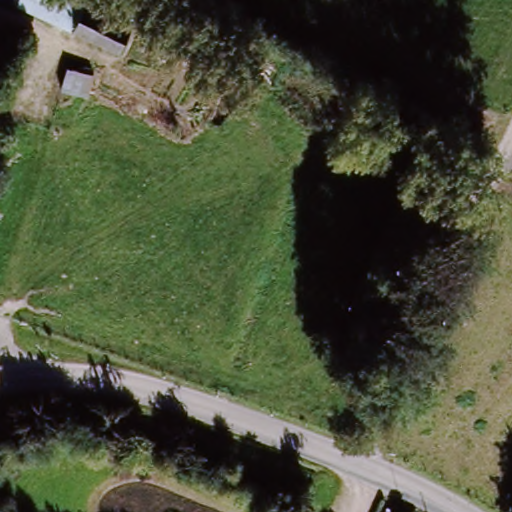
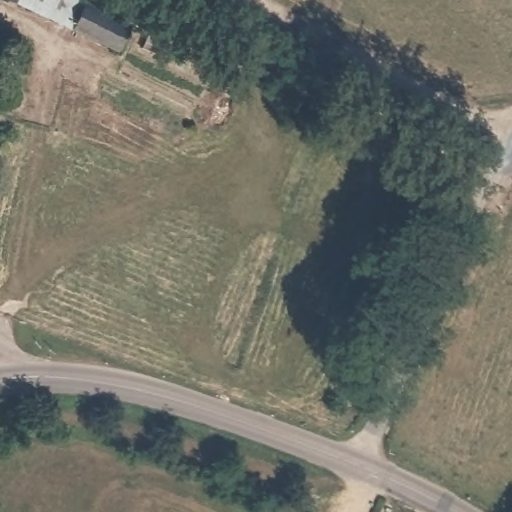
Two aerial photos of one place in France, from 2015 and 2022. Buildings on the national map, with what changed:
unchanged [(128,28),(116,48),(27,0),(77,0),(128,28)]
unchanged [(152,16),(215,47),(207,65),(149,36),(152,16)]
unchanged [(65,69),(97,80),(89,100),(58,89),(65,69)]

